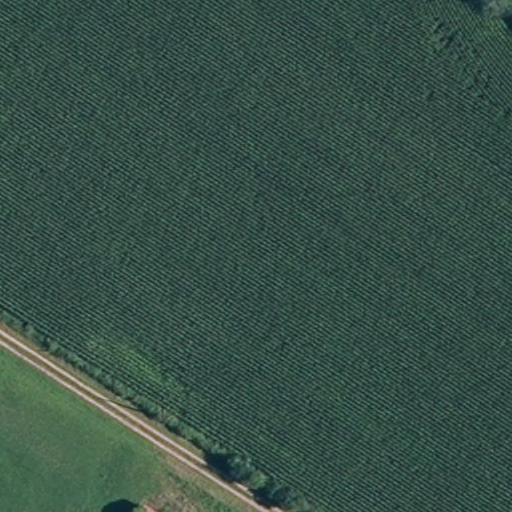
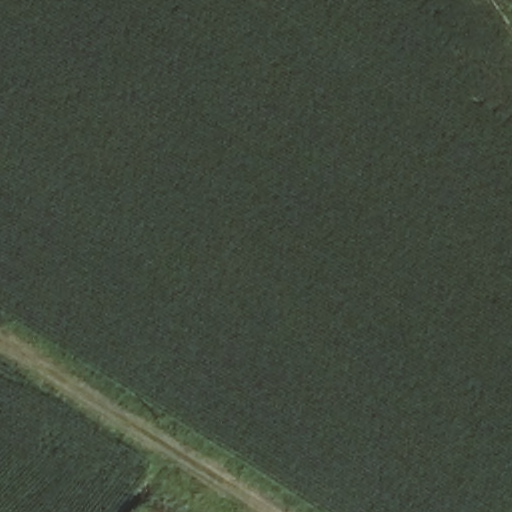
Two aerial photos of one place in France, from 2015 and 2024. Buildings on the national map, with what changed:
unchanged [(144,512),(142,512),(143,511),(144,512)]

